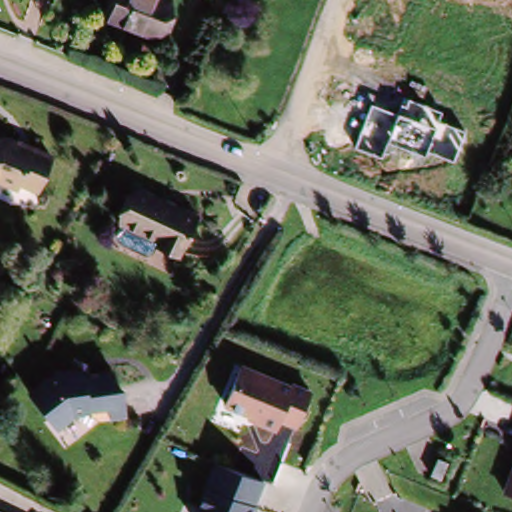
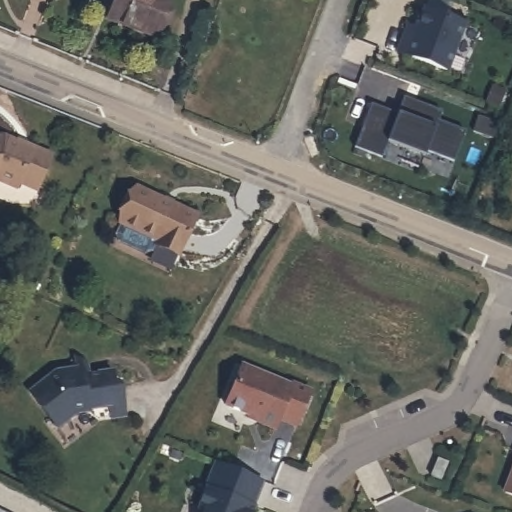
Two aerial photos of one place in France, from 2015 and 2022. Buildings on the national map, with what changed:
unchanged [(151,42),(106,25),(99,23),(108,0),(153,0),(166,5),(151,42)]
new [(468,24),(449,72),(397,56),(407,27),(416,30),(423,8),(468,24)]
unchanged [(397,114),(400,105),(404,107),(407,99),(442,113),(439,121),(464,131),(453,163),(426,152),(425,156),(388,142),(381,158),(355,148),(371,105),(397,114)]
unchanged [(48,160),(33,194),(16,186),(13,192),(0,186),(0,139),(48,160)]
unchanged [(149,244),(152,239),(111,220),(128,185),(191,214),(173,249),(171,254),(149,244)]
unchanged [(75,367),(74,355),(86,364),(88,375),(105,372),(108,385),(115,390),(120,418),(93,423),(88,410),(74,411),(56,425),(28,389),(55,367),(75,367)]
unchanged [(314,391),(299,430),(279,424),(275,432),(221,407),(238,366),(314,391)]
unchanged [(199,512),(213,461),(264,480),(253,512),(199,512)]
unchanged [(500,496),(512,463),(512,500),(500,496)]
unchanged [(7,512),(1,512),(2,510),(7,512)]

